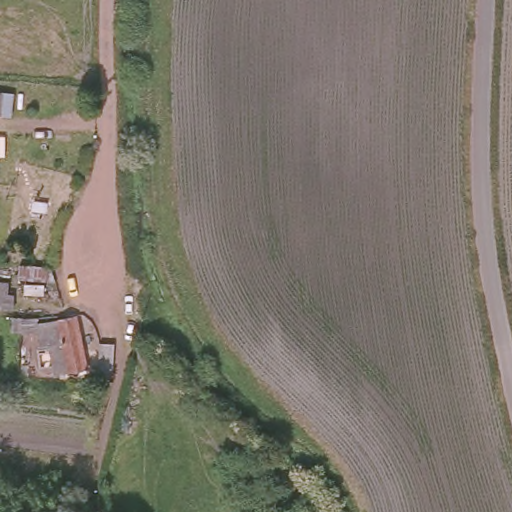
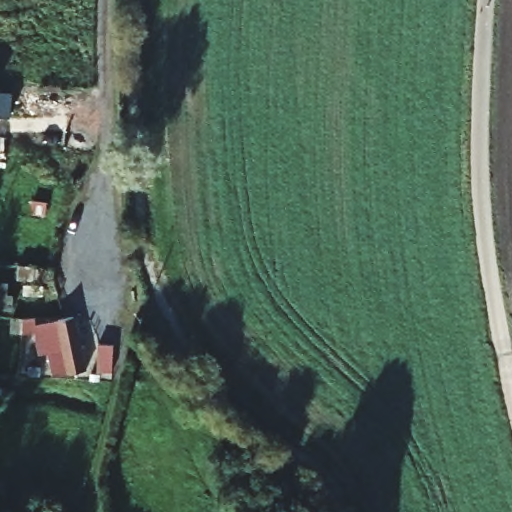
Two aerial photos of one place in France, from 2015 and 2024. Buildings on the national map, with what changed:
unchanged [(0,115),(0,93),(17,94),(15,116),(0,115)]
unchanged [(45,353),(44,345),(37,346),(36,332),(22,333),(22,325),(67,321),(83,319),(87,372),(55,375),(52,362),(46,363),(45,353)]
unchanged [(99,370),(99,343),(113,344),(112,370),(99,370)]

